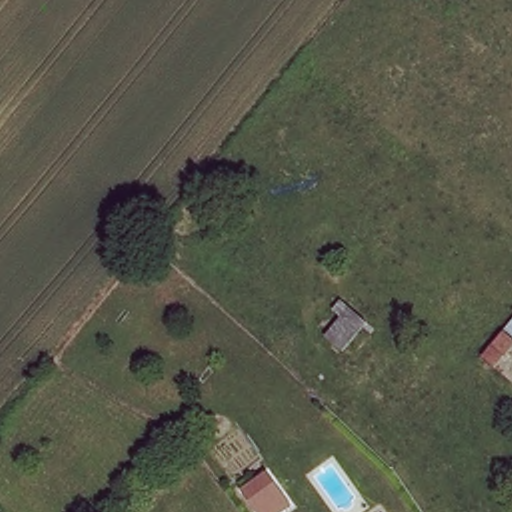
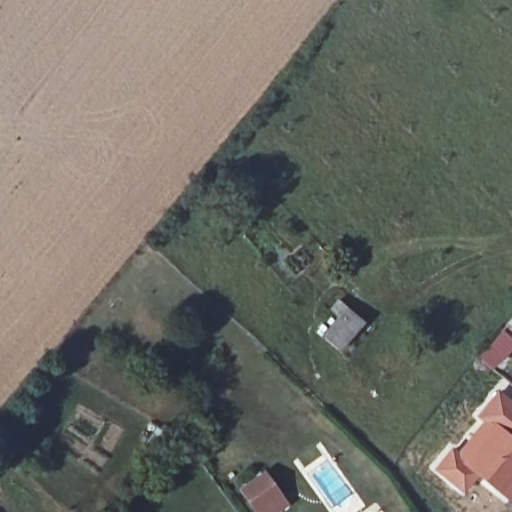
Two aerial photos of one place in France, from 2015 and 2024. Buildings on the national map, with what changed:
unchanged [(347,305),(362,319),(337,348),(321,335),(347,305)]
unchanged [(512,308),(512,333),(488,363),(476,354),(512,308)]
unchanged [(512,378),(512,399),(502,392),(512,378)]
new [(457,449),(481,421),(475,417),(497,389),(512,401),(512,495),(507,501),(477,475),(461,492),(432,470),(451,446),(457,449)]
new [(263,468),(288,504),(277,512),(254,512),(236,487),(263,468)]

